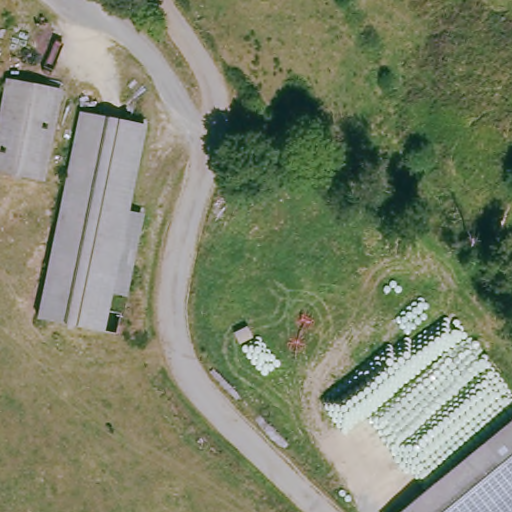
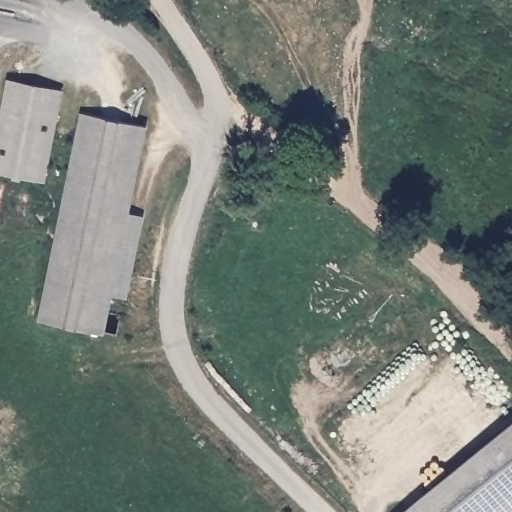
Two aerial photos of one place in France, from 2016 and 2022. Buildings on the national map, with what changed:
unchanged [(42,173),(0,165),(0,109),(7,74),(59,85),(42,173)]
unchanged [(104,325),(43,312),(85,106),(145,117),(104,325)]
unchanged [(512,423),(512,475),(487,443),(512,423)]
unchanged [(512,512),(398,512),(487,443),(512,475),(512,512)]

